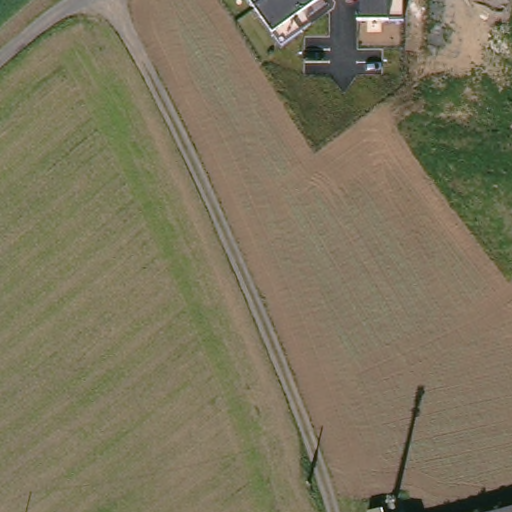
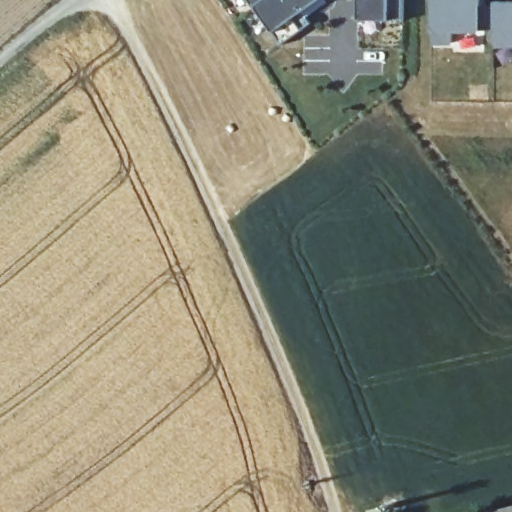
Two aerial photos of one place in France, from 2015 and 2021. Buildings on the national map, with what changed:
unchanged [(304,11),(313,25),(283,45),(273,31),(250,0),(319,0),(304,11)]
unchanged [(403,20),(390,20),(358,19),(358,0),(404,0),(403,20)]
new [(503,31),(488,31),(460,31),(460,44),(439,43),(439,0),(488,0),(488,7),(503,7),(503,3),(512,3),(512,47),(503,47),(503,31)]
unchanged [(512,512),(492,512),(512,507),(512,512)]

